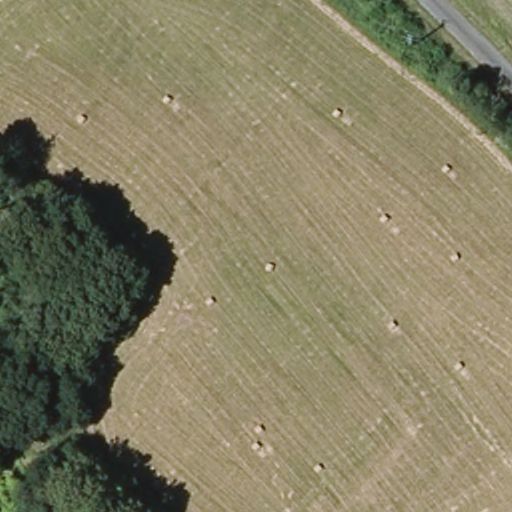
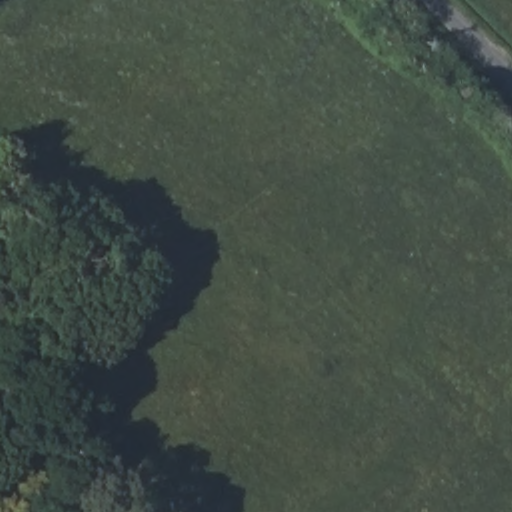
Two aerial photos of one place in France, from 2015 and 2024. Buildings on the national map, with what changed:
[]

